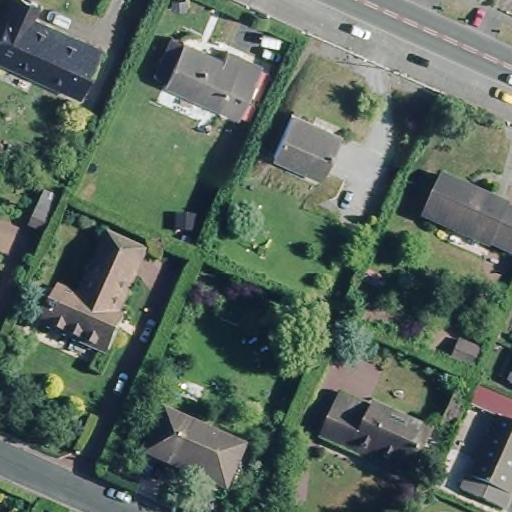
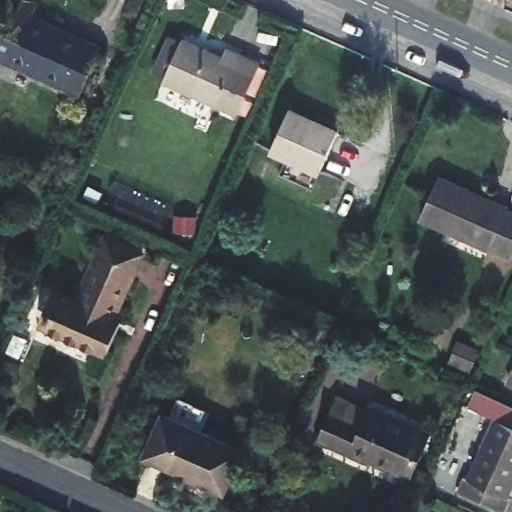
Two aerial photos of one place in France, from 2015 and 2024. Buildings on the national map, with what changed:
unchanged [(98,48),(79,93),(0,56),(0,25),(11,0),(26,0),(33,4),(28,16),(98,48)]
unchanged [(165,80),(185,38),(200,44),(199,49),(225,59),(230,49),(260,62),(236,112),(165,80)]
unchanged [(286,109),(336,130),(318,168),(270,146),(286,109)]
unchanged [(441,176),(468,188),(466,193),(491,204),(494,199),(509,207),(508,209),(512,211),(512,258),(421,219),(441,176)]
unchanged [(66,206),(51,241),(33,234),(48,198),(66,206)]
unchanged [(143,259),(117,317),(121,318),(103,356),(49,332),(64,298),(83,307),(111,246),(143,259)]
unchanged [(510,383),(512,378),(512,384),(510,383)]
unchanged [(506,494),(511,496),(505,511),(460,491),(467,476),(472,478),(498,419),(465,404),(475,384),(512,401),(512,481),(506,494)]
unchanged [(322,441),(340,401),(370,414),(373,407),(432,433),(414,475),(370,456),(368,461),(322,441)]
unchanged [(146,457),(164,416),(239,450),(221,491),(146,457)]

